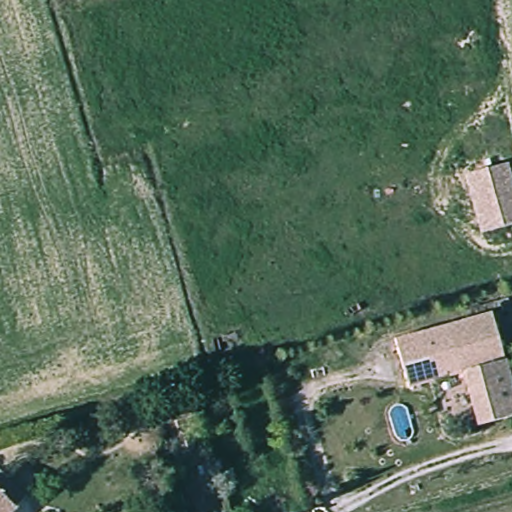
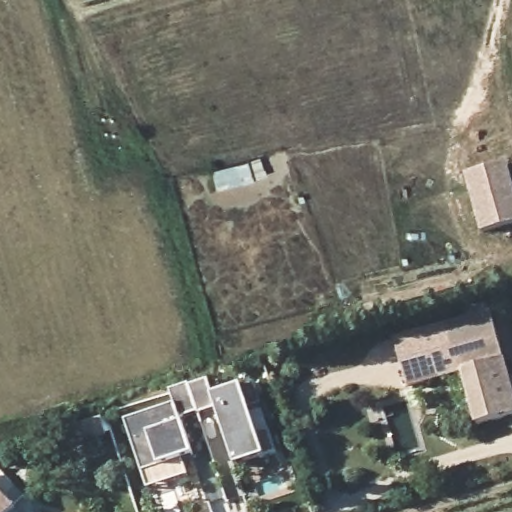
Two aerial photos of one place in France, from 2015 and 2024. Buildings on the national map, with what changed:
unchanged [(470,178),(483,174),(510,166),(512,174),(512,228),(502,231),(487,235),(470,178)]
unchanged [(512,378),(512,410),(479,420),(465,368),(438,375),(409,383),(396,335),(492,305),(512,378)]
new [(188,384),(207,379),(212,397),(253,384),(276,453),(235,467),(214,405),(197,412),(188,384)]
new [(175,405),(170,390),(188,384),(197,412),(180,417),(192,455),(182,459),(187,475),(147,489),(125,422),(175,405)]
unchanged [(40,505),(33,512),(0,512),(0,489),(12,477),(20,484),(40,505)]

